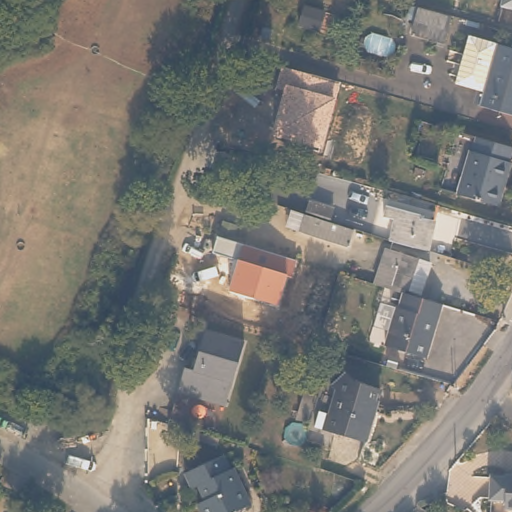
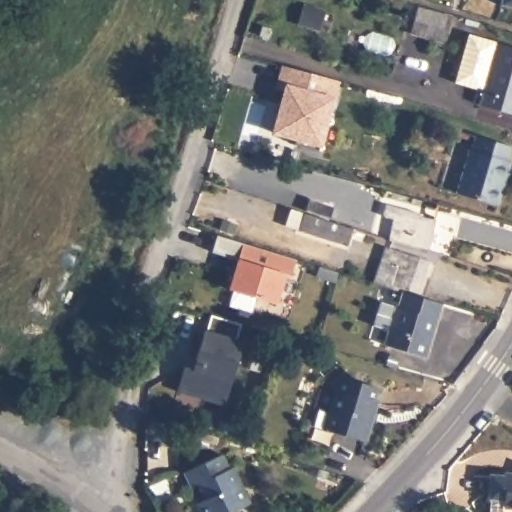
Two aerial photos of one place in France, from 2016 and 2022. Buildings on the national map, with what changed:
unchanged [(452,33),(419,24),(425,0),(430,0),(458,7),(452,33)]
unchanged [(502,6),(503,0),(512,0),(512,8),(502,6)]
unchanged [(512,47),(512,111),(479,103),(483,88),(459,81),(470,35),(512,47)]
unchanged [(336,98),(322,148),(319,151),(298,145),(299,140),(272,134),(283,89),(276,87),(282,66),(342,82),(336,98)]
unchanged [(511,151),(497,208),(458,198),(472,140),(511,151)]
unchanged [(310,209),(355,220),(350,242),(299,229),(304,207),(310,209)]
unchanged [(428,219),(428,221),(441,224),(434,254),(395,244),(400,224),(389,222),(392,209),(428,219)]
unchanged [(297,260),(291,277),(287,275),(280,304),(230,291),(240,259),(213,253),(217,237),(297,260)]
unchanged [(424,294),(410,289),(396,286),(395,294),(385,291),(377,289),(385,251),(417,259),(431,263),(424,294)]
unchanged [(403,299),(401,306),(389,303),(391,295),(403,299)]
unchanged [(445,305),(432,359),(391,350),(400,313),(403,313),(407,296),(445,305)]
unchanged [(244,344),(225,404),(178,393),(185,368),(193,370),(205,330),(244,344)]
unchanged [(352,381),(379,387),(376,408),(372,407),(366,439),(315,431),(318,413),(331,416),(336,393),(330,386),(344,373),(352,381)]
unchanged [(224,468),(228,466),(250,499),(231,512),(201,512),(198,506),(204,503),(195,488),(190,491),(182,478),(217,457),(224,468)]
unchanged [(502,503),(501,492),(490,492),(490,469),(503,471),(504,468),(512,468),(512,503),(502,503)]

